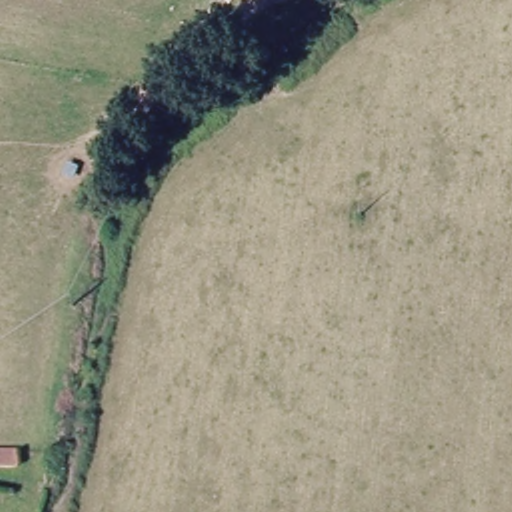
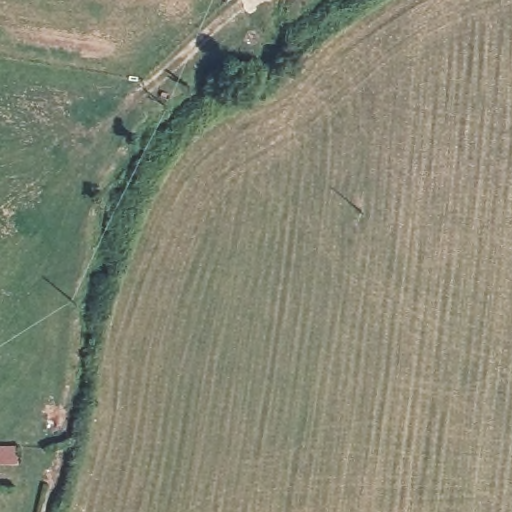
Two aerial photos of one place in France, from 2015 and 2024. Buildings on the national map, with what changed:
unchanged [(7,447),(8,463),(0,464),(0,447),(7,447)]

